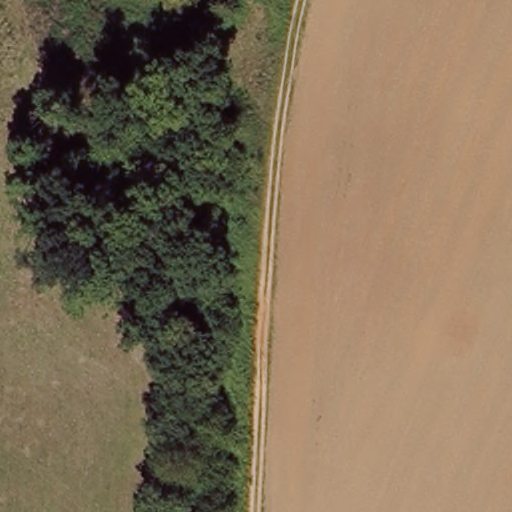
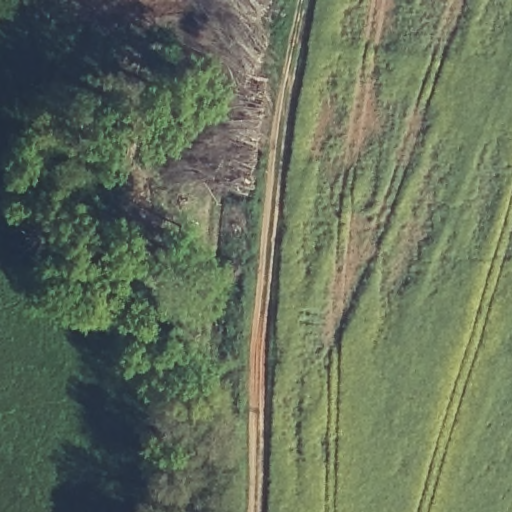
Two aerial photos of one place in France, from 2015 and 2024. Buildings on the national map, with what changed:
[]

